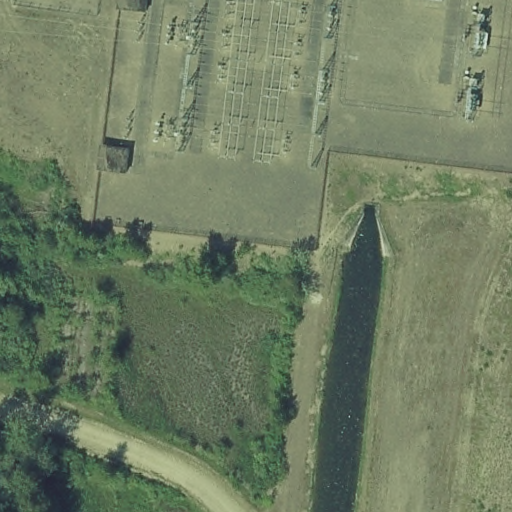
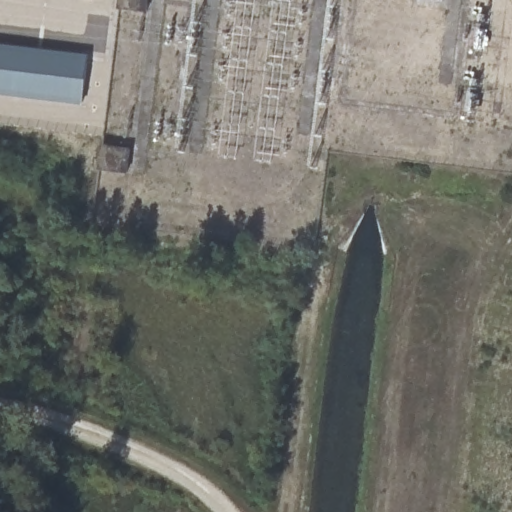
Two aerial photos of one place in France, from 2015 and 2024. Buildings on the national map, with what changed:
unchanged [(148,0),(146,14),(118,8),(119,0),(148,0)]
unchanged [(435,0),(443,0),(443,2),(435,0)]
new [(90,56),(86,106),(0,98),(0,46),(90,56)]
unchanged [(100,146),(100,144),(113,147),(128,150),(125,174),(97,169),(100,146)]

